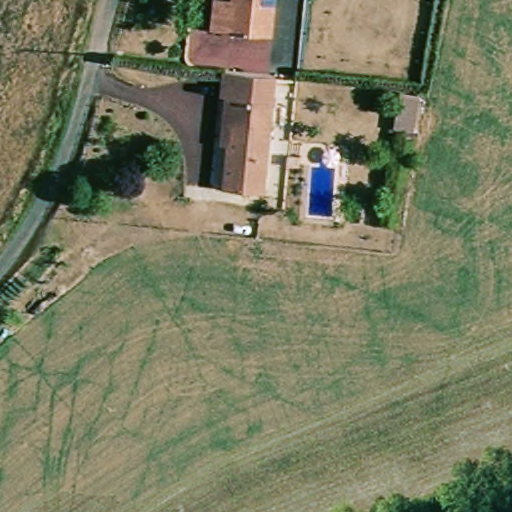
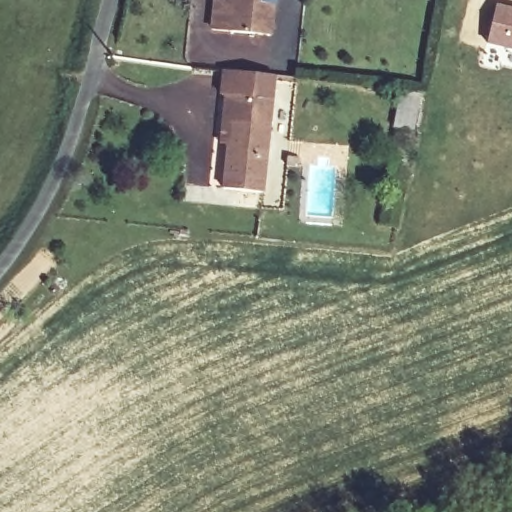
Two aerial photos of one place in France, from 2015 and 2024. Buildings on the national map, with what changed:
unchanged [(240,31),(224,29),(228,0),(282,0),(276,38),(240,31)]
new [(512,9),(512,51),(487,45),(497,5),(512,9)]
unchanged [(282,81),(267,191),(235,186),(240,132),(228,131),(231,100),(235,80),(282,81)]
unchanged [(404,89),(429,92),(405,227),(384,224),(404,89)]

